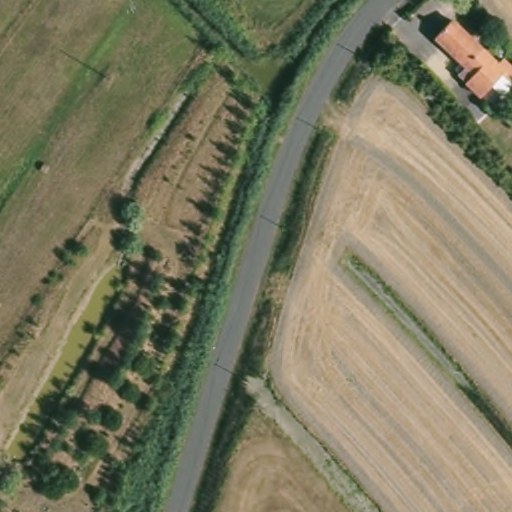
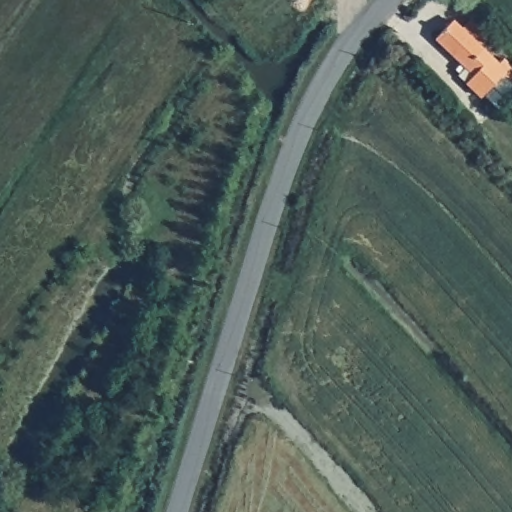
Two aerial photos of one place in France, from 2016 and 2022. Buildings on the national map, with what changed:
unchanged [(437,42),(456,22),(500,69),(506,64),(512,71),(512,90),(505,82),(483,104),(468,90),(461,82),(469,74),(437,42)]

